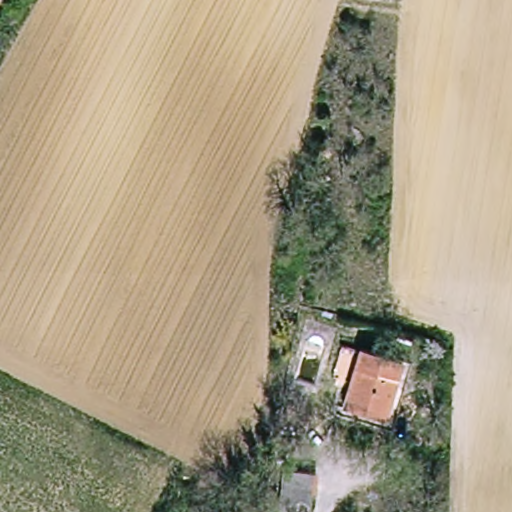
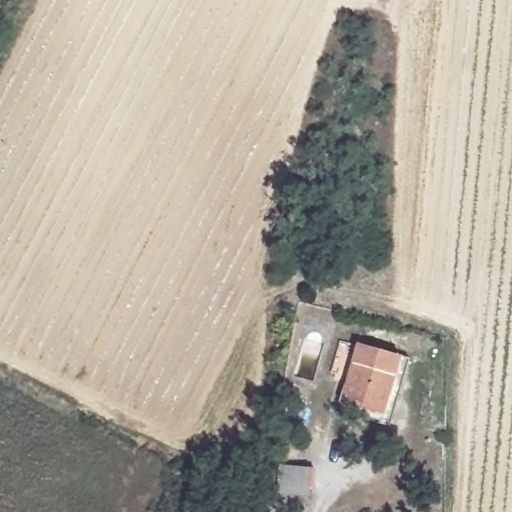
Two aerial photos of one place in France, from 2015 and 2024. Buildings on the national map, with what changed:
unchanged [(342,389),(365,330),(403,345),(380,404),(342,389)]
unchanged [(403,345),(415,350),(387,424),(336,404),(342,389),(380,404),(403,345)]
unchanged [(317,472),(306,512),(284,511),(286,470),(317,472)]

